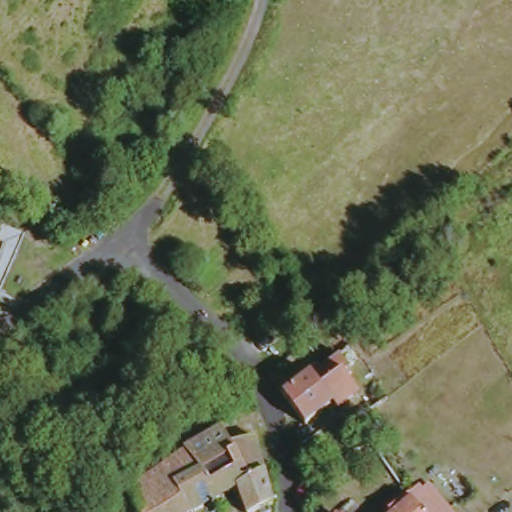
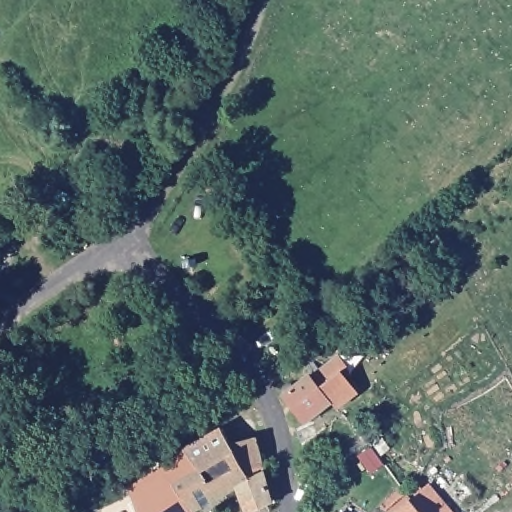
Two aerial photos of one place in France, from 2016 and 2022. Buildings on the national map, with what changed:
unchanged [(320,375),(340,403),(312,425),(291,395),(320,375)]
unchanged [(193,446),(228,427),(237,443),(262,438),(270,471),(278,505),(261,512),(251,512),(242,487),(222,499),(197,512),(145,512),(135,490),(190,452),(193,450),(193,446)]
unchanged [(447,503),(449,502),(458,512),(403,512),(433,487),(447,503)]

